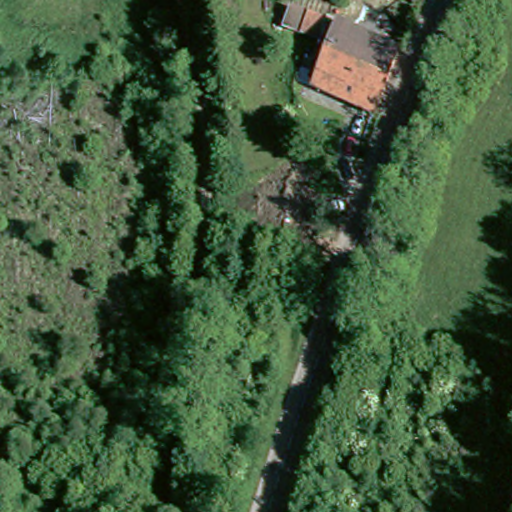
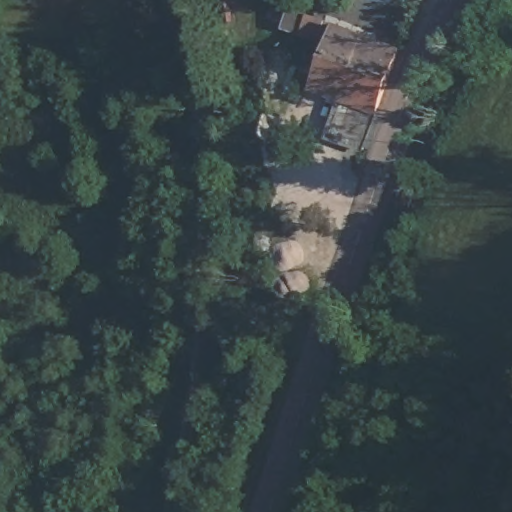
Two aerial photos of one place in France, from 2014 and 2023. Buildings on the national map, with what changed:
unchanged [(290,31),(280,28),(285,6),(298,11),(324,19),(317,40),(290,31)]
unchanged [(374,113),(315,89),(337,26),(397,48),(374,113)]

